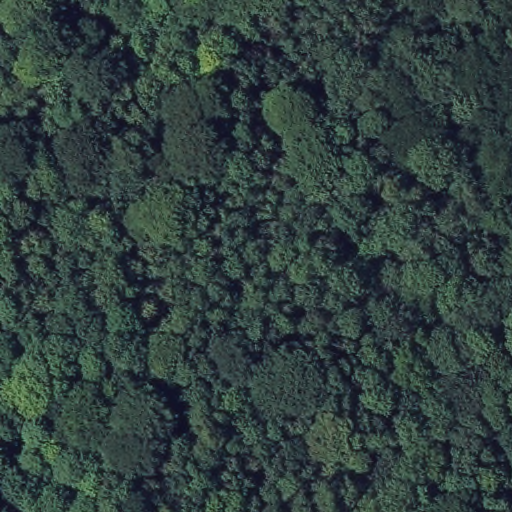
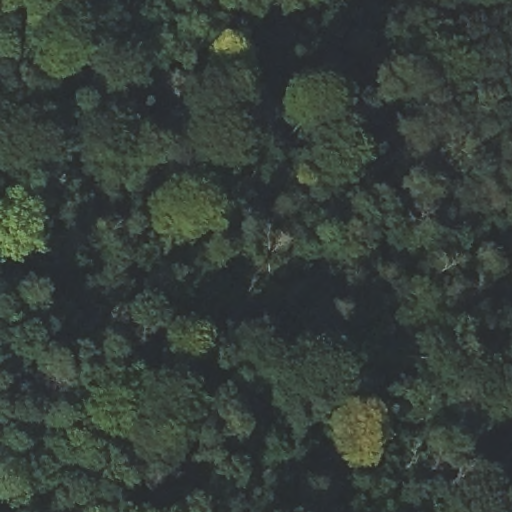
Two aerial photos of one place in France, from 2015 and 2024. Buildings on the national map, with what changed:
[]

